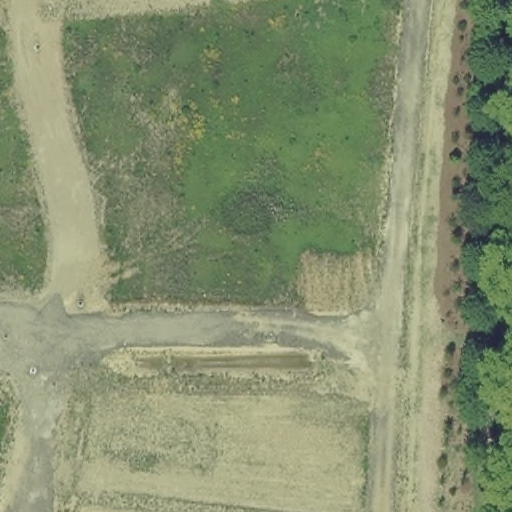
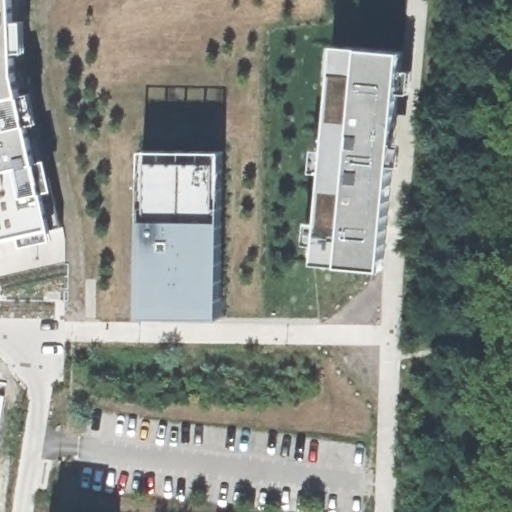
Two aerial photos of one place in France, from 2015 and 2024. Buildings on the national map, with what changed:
new [(29,72),(62,227),(0,241),(0,0),(26,0),(29,72)]
new [(335,46),(403,52),(401,70),(412,71),(410,93),(400,93),(383,269),(315,263),(335,46)]
new [(143,150),(223,151),(221,318),(142,317),(143,150)]
new [(0,500),(0,385),(17,387),(0,500)]

